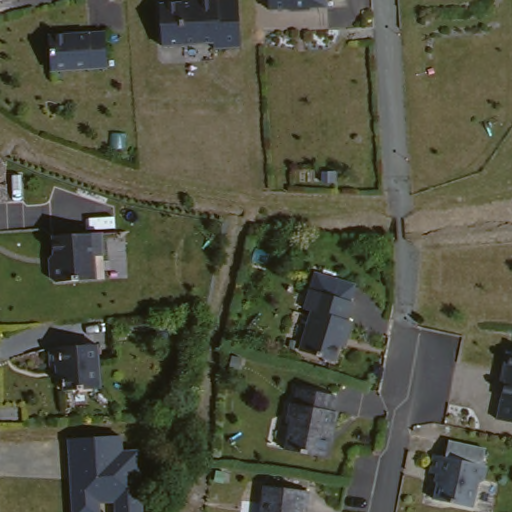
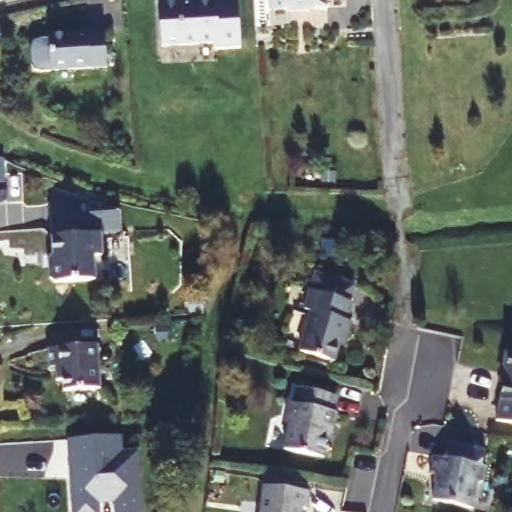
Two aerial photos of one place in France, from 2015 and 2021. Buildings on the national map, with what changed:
unchanged [(167,60),(166,42),(163,4),(185,2),(184,0),(241,0),(244,47),(218,49),(218,56),(167,60)]
unchanged [(323,1),(324,12),(306,14),(307,15),(288,16),(283,14),(266,15),(265,0),(343,0),(323,1)]
unchanged [(48,40),(98,36),(101,71),(50,75),(48,40)]
unchanged [(45,282),(44,272),(48,267),(47,241),(97,238),(98,261),(89,261),(90,285),(49,287),(45,282)]
unchanged [(313,292),(354,306),(348,324),(353,326),(348,343),(343,342),(335,366),(302,356),(314,315),(307,312),(313,292)]
unchanged [(63,384),(63,373),(57,374),(56,361),(50,361),(49,343),(98,340),(100,382),(63,384)]
unchanged [(512,416),(499,413),(508,368),(504,362),(508,345),(512,346),(512,416)]
unchanged [(293,418),(289,418),(292,398),(296,399),(299,383),(338,391),(335,407),(339,407),(336,427),(332,426),(327,452),(288,445),(293,418)]
unchanged [(123,451),(141,450),(144,512),(114,512),(114,502),(100,503),(101,512),(71,512),(67,441),(123,437),(123,451)]
unchanged [(483,443),(480,459),(485,460),(482,475),(477,478),(472,504),(432,497),(437,471),(428,469),(431,451),(443,452),(445,437),(483,443)]
unchanged [(309,502),(302,501),(300,512),(259,512),(263,480),(310,486),(309,502)]

